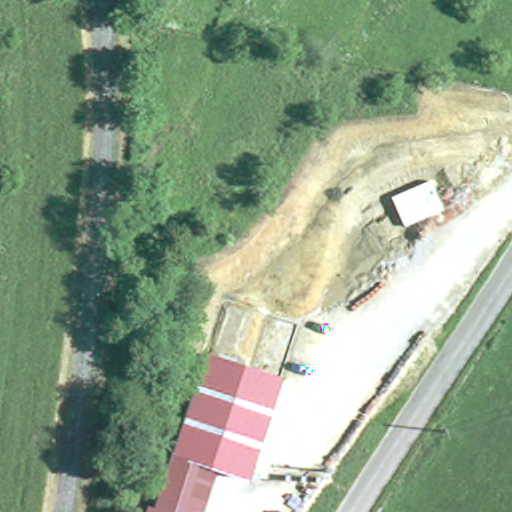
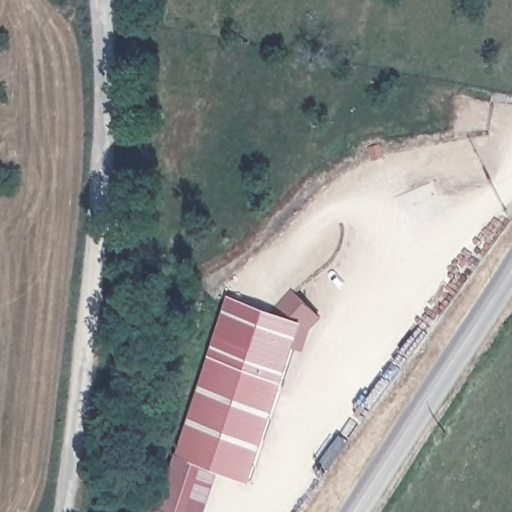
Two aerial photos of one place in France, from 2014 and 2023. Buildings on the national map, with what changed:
new [(294,347),(303,321),(272,310),(290,288),(322,316),(310,327),(304,350),(294,347)]
new [(272,310),(303,321),(294,347),(283,378),(207,352),(226,295),(272,310)]
unchanged [(250,482),(220,470),(206,512),(148,512),(150,506),(155,508),(207,352),(283,378),(250,482)]

